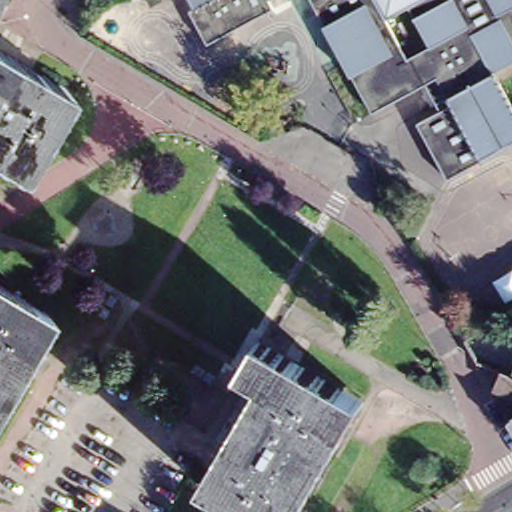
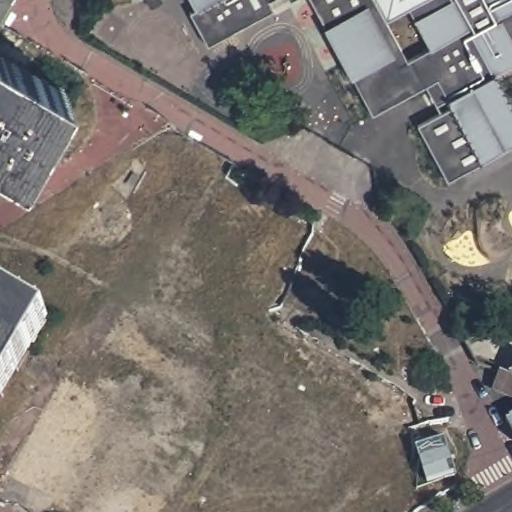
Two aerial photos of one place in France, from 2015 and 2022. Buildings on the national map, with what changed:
unchanged [(271,9),(205,46),(187,13),(193,10),(188,0),(267,0),(266,0),(271,9)]
unchanged [(285,0),(290,0),(286,2),(285,0)]
unchanged [(307,0),(374,0),(386,22),(407,60),(429,49),(408,11),(426,0),(512,0),(512,20),(510,20),(512,23),(512,61),(488,74),(512,116),(512,141),(479,160),(480,161),(444,181),(413,126),(437,112),(422,85),(370,114),(307,0)]
unchanged [(386,22),(374,0),(426,0),(408,11),(386,22)]
unchanged [(31,75),(25,85),(0,69),(0,55),(31,75)]
unchanged [(25,85),(31,75),(65,96),(10,180),(0,173),(0,69),(25,85)]
unchanged [(46,317),(26,351),(0,394),(0,289),(46,317)]
demolished [(363,405),(298,512),(243,512),(203,490),(260,386),(227,365),(243,335),(363,405)]
unchanged [(499,377),(510,382),(512,376),(512,401),(492,393),(499,377)]
unchanged [(512,436),(506,426),(512,423),(512,436)]

